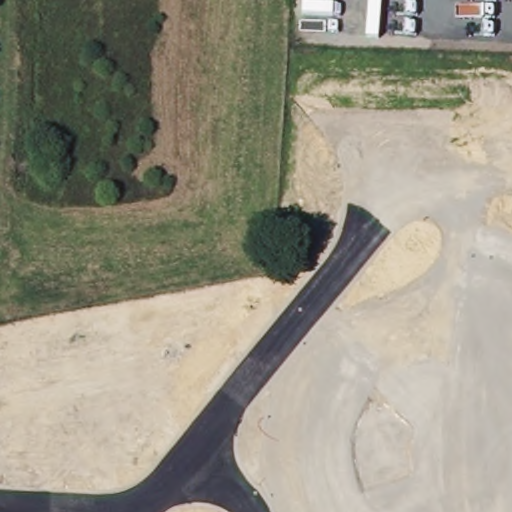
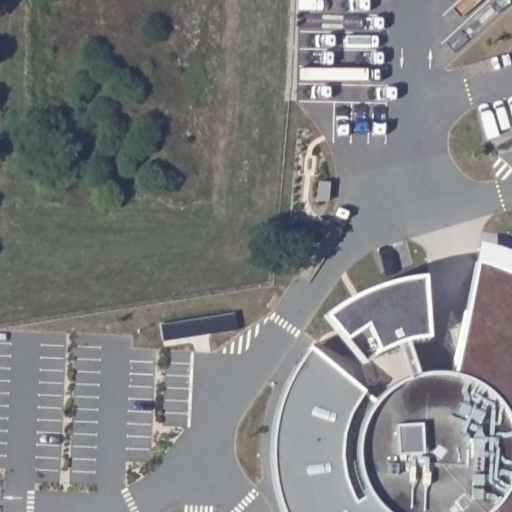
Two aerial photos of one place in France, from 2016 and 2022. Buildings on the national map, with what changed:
new [(384,391),(406,379),(429,373),(452,373),(480,242),(512,252),(512,512),(282,512),(279,506),(271,477),(271,448),(276,414),(285,389),(295,369),(308,347),(375,400),(384,391)]
new [(424,338),(405,340),(390,344),(376,354),(364,360),(345,339),(325,317),(343,304),(360,294),(389,284),(422,279),(424,338)]
new [(234,313),(238,330),(164,343),(161,325),(234,313)]

